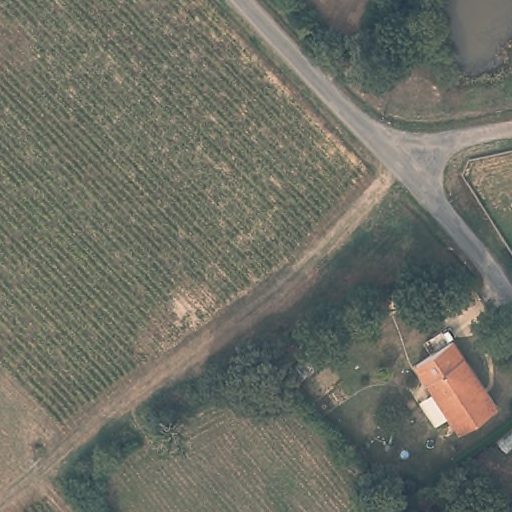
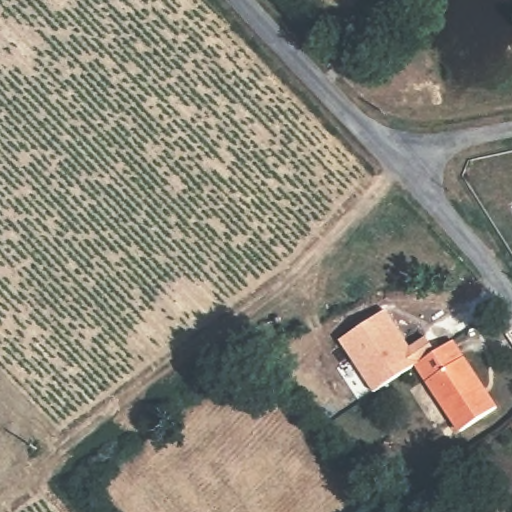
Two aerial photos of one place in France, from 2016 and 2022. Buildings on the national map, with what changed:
new [(411,369),(372,393),(338,339),(387,309),(410,346),(426,335),(433,349),(411,369)]
unchanged [(444,339),(499,399),(466,429),(411,369),(444,339)]
unchanged [(511,427),(512,426),(512,428),(511,427)]

